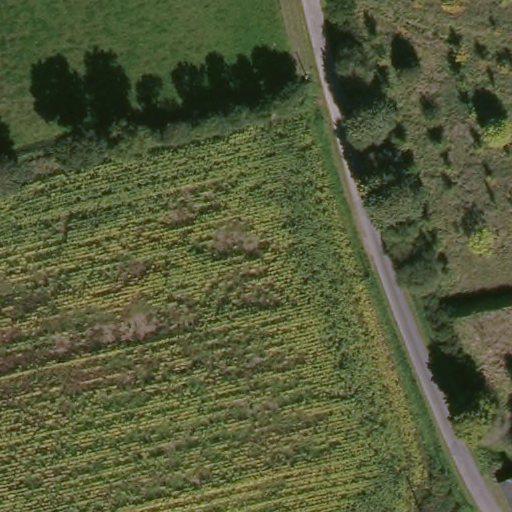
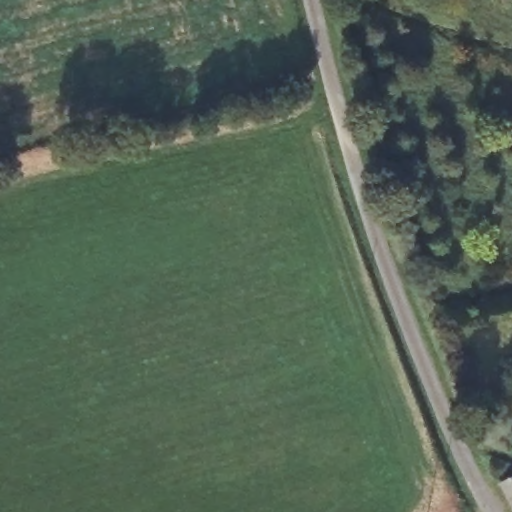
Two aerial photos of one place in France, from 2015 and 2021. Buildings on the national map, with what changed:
unchanged [(512,476),(512,511),(497,484),(512,476)]

